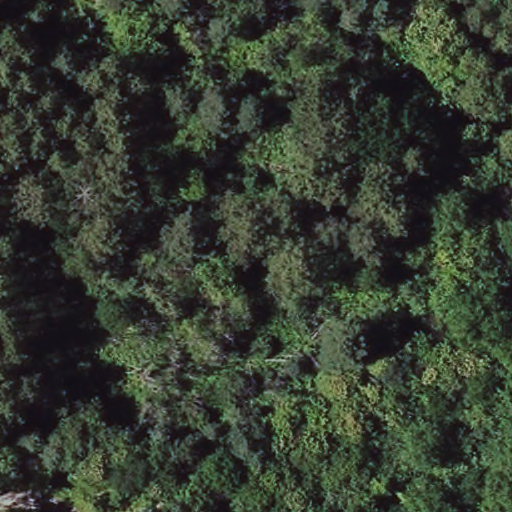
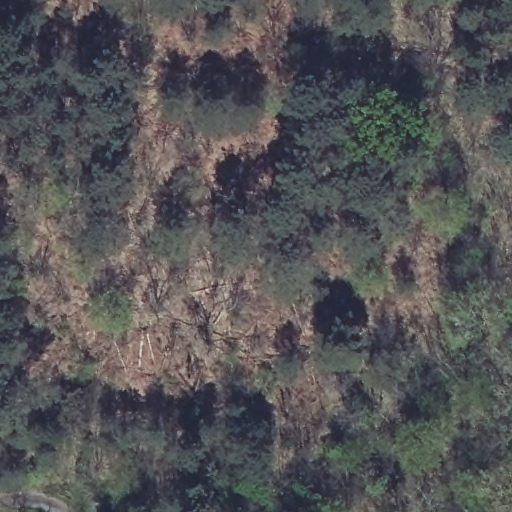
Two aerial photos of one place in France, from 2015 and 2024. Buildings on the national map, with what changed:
[]

